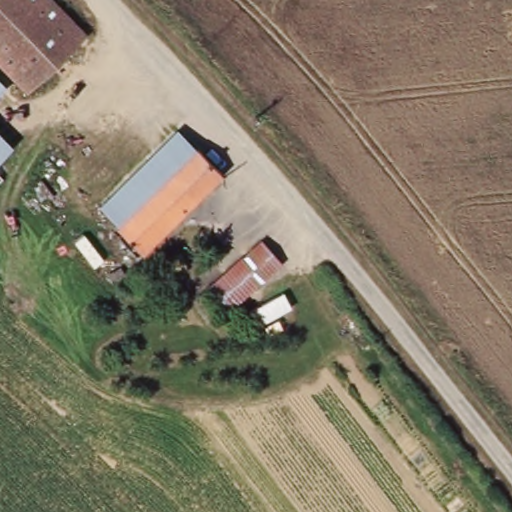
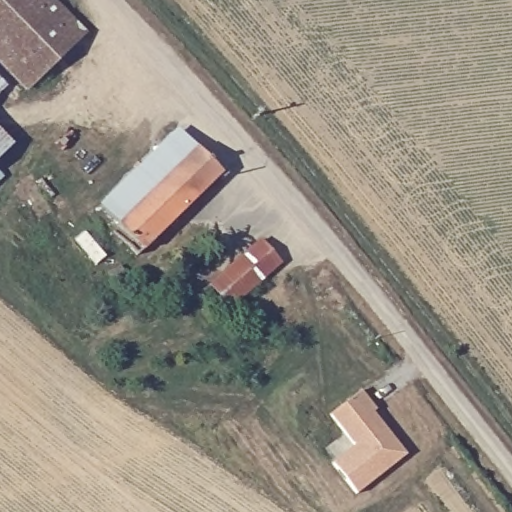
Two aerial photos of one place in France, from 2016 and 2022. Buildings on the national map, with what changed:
unchanged [(93,27),(20,99),(0,78),(0,0),(66,0),(93,27)]
unchanged [(123,224),(103,205),(180,128),(203,145),(123,224)]
unchanged [(0,155),(0,137),(9,146),(0,155)]
unchanged [(227,174),(147,255),(121,228),(123,224),(203,145),(227,174)]
unchanged [(205,296),(266,240),(286,263),(225,319),(205,296)]
new [(361,391),(376,410),(373,413),(406,455),(356,494),(333,463),(354,446),(344,432),(330,415),(361,391)]

